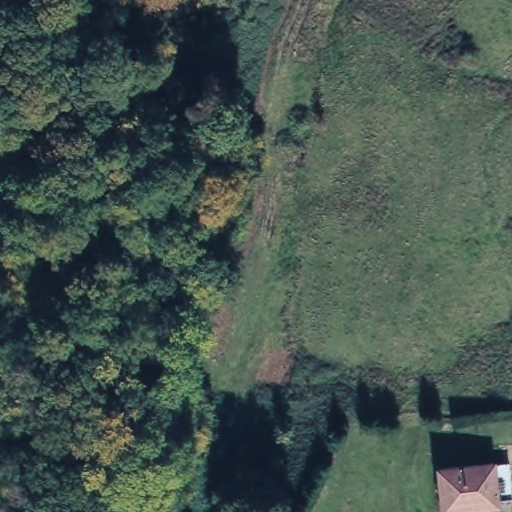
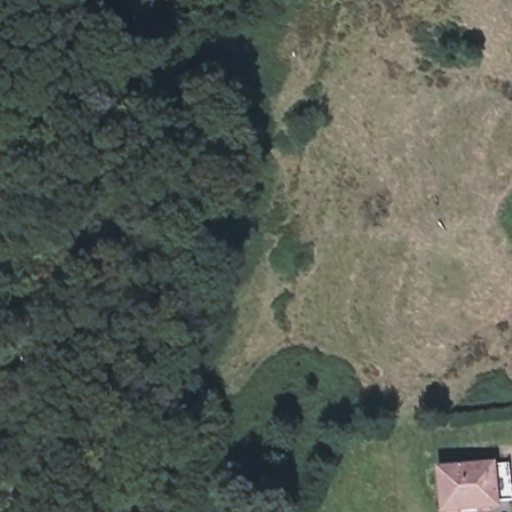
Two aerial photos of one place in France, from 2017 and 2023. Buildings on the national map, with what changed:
unchanged [(512,477),(512,495),(496,497),(496,505),(443,508),(441,463),(510,459),(512,477)]

